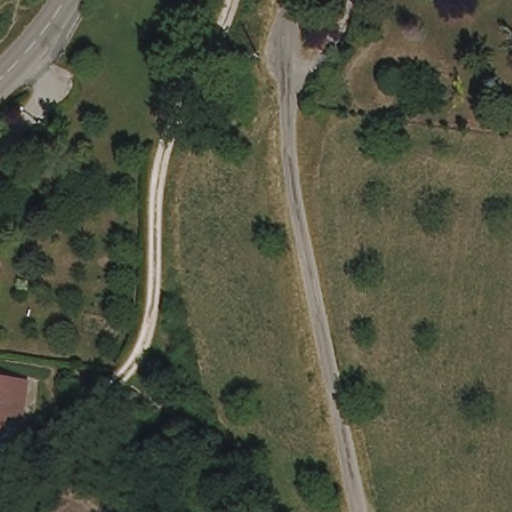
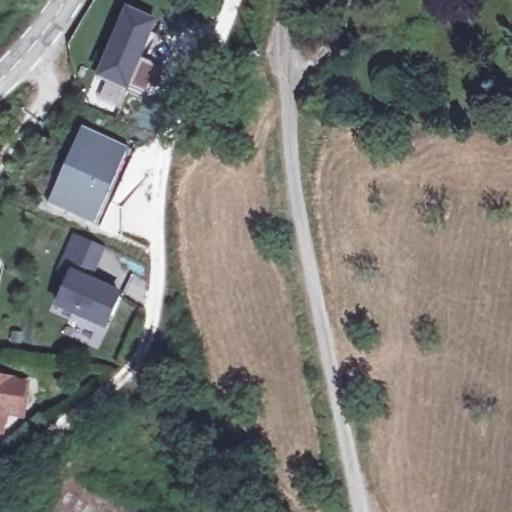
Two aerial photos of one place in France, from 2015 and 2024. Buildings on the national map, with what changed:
new [(115,43),(118,44),(122,36),(115,33),(127,6),(157,18),(143,54),(165,63),(151,97),(130,88),(132,85),(103,73),(115,43)]
new [(87,124),(100,130),(132,144),(98,222),(52,202),(66,172),(87,124)]
new [(63,272),(73,249),(80,233),(109,245),(102,261),(94,279),(124,292),(110,324),(62,303),(74,277),(63,272)]
unchanged [(20,376),(15,407),(0,405),(0,373),(20,376)]

